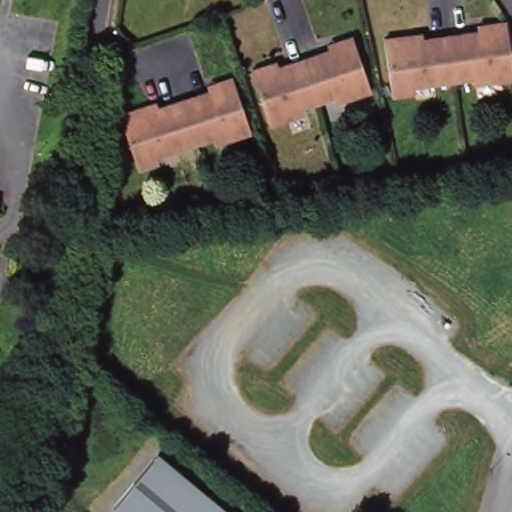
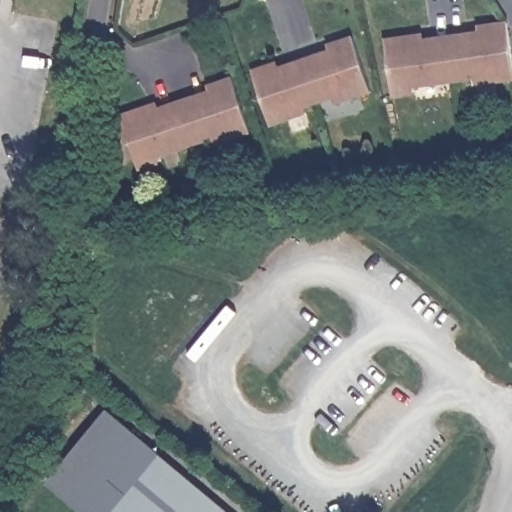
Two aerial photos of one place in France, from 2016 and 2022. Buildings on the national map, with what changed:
unchanged [(473,79),(456,81),(450,37),(479,33),(478,26),(488,25),(507,22),(512,58),(512,79),(474,84),(473,79)]
unchanged [(386,41),(393,40),(415,36),(425,35),(426,40),(450,37),(456,81),(413,86),(414,93),(409,94),(393,96),(386,41)]
unchanged [(268,67),(277,64),(279,70),(290,66),(304,61),(329,53),(328,47),(337,44),(352,39),(370,93),(335,104),(333,98),(317,103),(305,108),(307,113),(305,114),(269,126),(251,72),(268,67)]
unchanged [(200,97),(209,94),(207,88),(217,84),(233,79),(250,133),(215,145),(213,140),(199,145),(159,158),(160,163),(138,171),(121,119),(150,109),(158,106),(160,111),(184,102),(200,97)]
new [(113,512),(82,512),(45,482),(106,411),(157,458),(113,512)]
unchanged [(225,512),(114,512),(113,512),(157,458),(225,512)]

